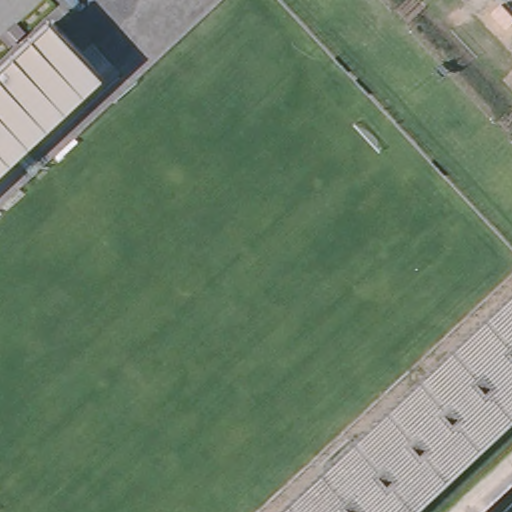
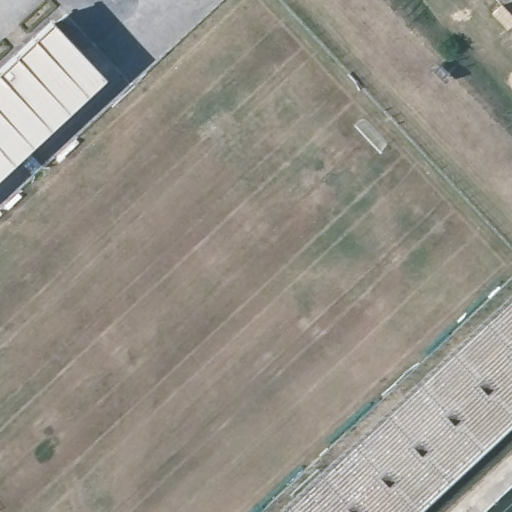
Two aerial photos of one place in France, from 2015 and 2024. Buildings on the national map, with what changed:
unchanged [(8,143),(5,146),(13,155),(0,167),(0,69),(53,19),(64,9),(92,39),(81,50),(103,72),(30,140),(21,131),(18,134),(43,161),(34,169),(8,143)]
unchanged [(512,298),(512,421),(415,512),(282,512),(512,298)]

